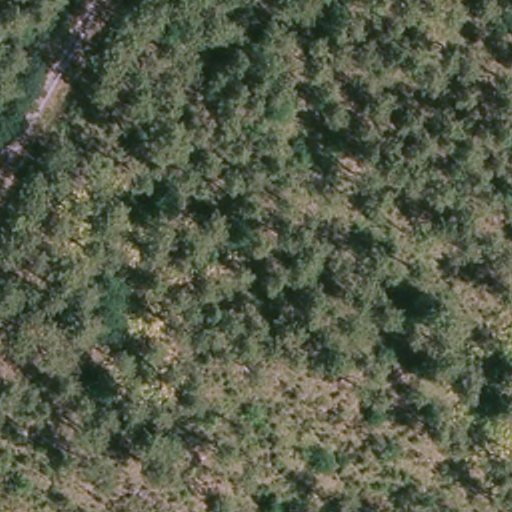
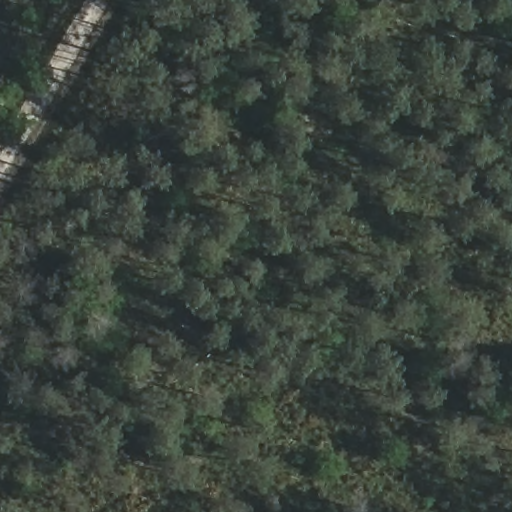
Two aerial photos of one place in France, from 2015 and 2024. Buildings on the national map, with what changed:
[]

